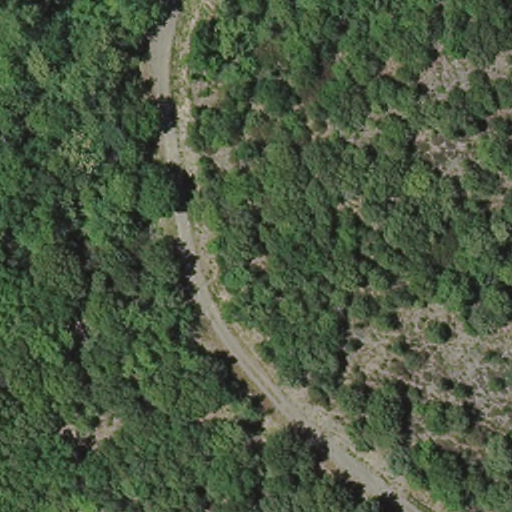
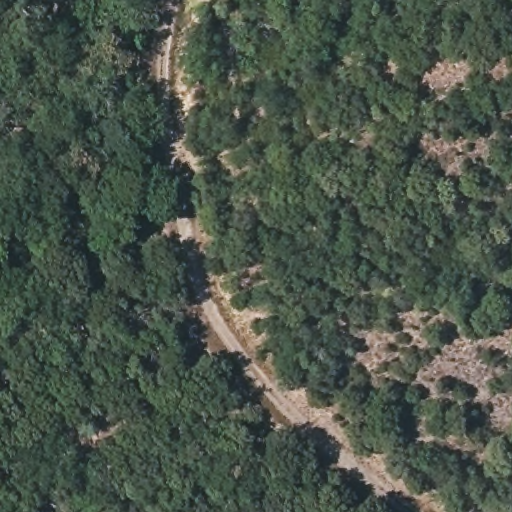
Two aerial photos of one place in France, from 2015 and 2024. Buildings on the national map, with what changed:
unchanged [(81,362),(58,318),(80,304),(102,352),(81,362)]

